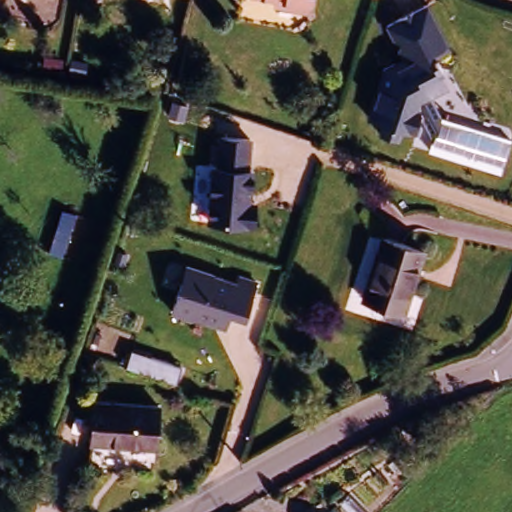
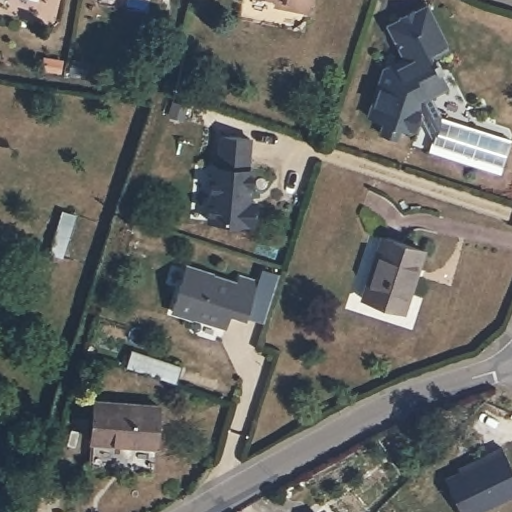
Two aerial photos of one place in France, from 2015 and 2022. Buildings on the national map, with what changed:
unchanged [(275,0),(306,0),(305,5),(275,0)]
unchanged [(453,49),(437,59),(452,87),(422,102),(413,132),(403,130),(400,142),(378,136),(382,122),(370,119),(383,72),(402,61),(385,27),(431,2),(453,49)]
unchanged [(250,170),(257,170),(253,229),(207,225),(212,166),(217,166),(220,137),(252,140),(250,170)]
unchanged [(425,248),(405,311),(366,298),(386,237),(425,248)]
unchanged [(238,282),(241,276),(258,281),(247,321),(232,317),(227,330),(172,312),(187,265),(238,282)]
unchanged [(178,367),(180,368),(177,386),(141,380),(145,362),(178,367)]
unchanged [(152,401),(157,442),(97,448),(92,407),(152,401)]
new [(512,493),(474,512),(463,512),(446,476),(460,470),(458,465),(499,446),(512,473),(512,493)]

